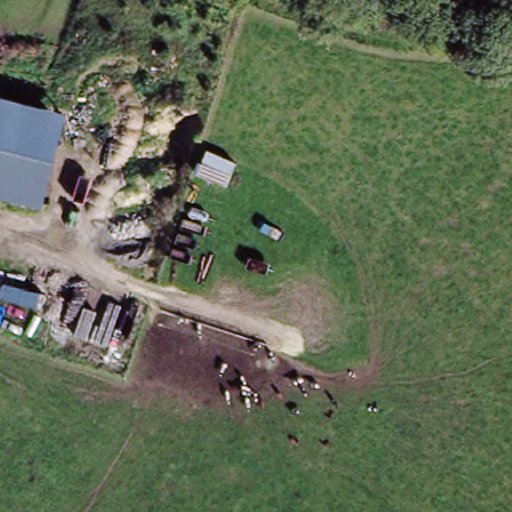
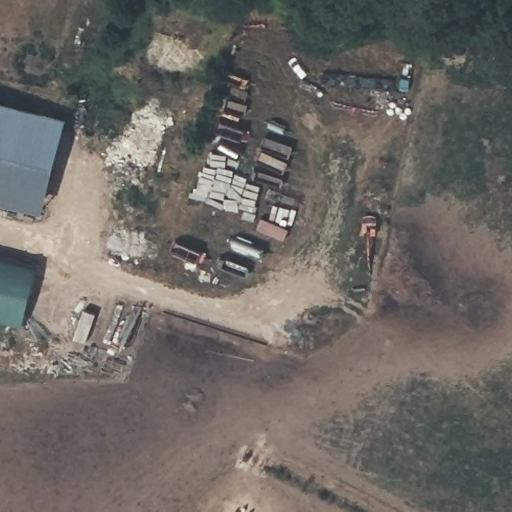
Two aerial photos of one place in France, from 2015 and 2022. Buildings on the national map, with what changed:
unchanged [(0,106),(25,113),(28,114),(66,124),(42,215),(0,203),(0,106)]
new [(24,324),(0,318),(0,256),(38,266),(24,324)]

